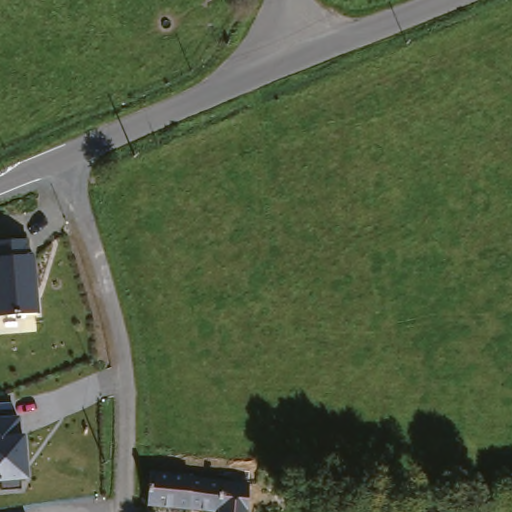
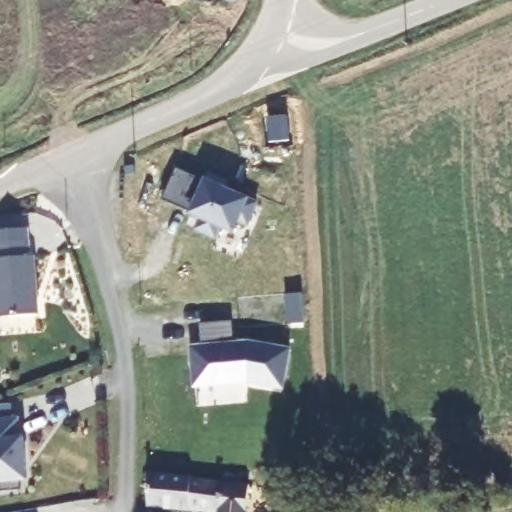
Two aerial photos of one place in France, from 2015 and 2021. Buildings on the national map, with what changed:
new [(174,168),(202,181),(203,178),(206,171),(229,181),(227,188),(249,198),(259,203),(249,228),(238,224),(234,234),(220,228),(216,238),(193,230),(198,218),(187,214),(188,211),(161,198),(174,168)]
unchanged [(26,257),(35,256),(39,314),(0,316),(0,243),(25,241),(26,257)]
new [(191,346),(201,345),(199,324),(231,321),(233,342),(247,341),(292,348),(285,391),(248,383),(193,387),(191,346)]
unchanged [(1,481),(0,482),(0,405),(11,404),(13,417),(18,416),(20,436),(23,435),(27,480),(18,481),(19,490),(1,490),(1,481)]
unchanged [(144,476),(219,484),(218,491),(226,492),(224,509),(216,508),(216,512),(177,512),(143,508),(144,476)]
new [(224,509),(226,492),(218,491),(219,484),(251,488),(248,512),(216,512),(216,508),(224,509)]

